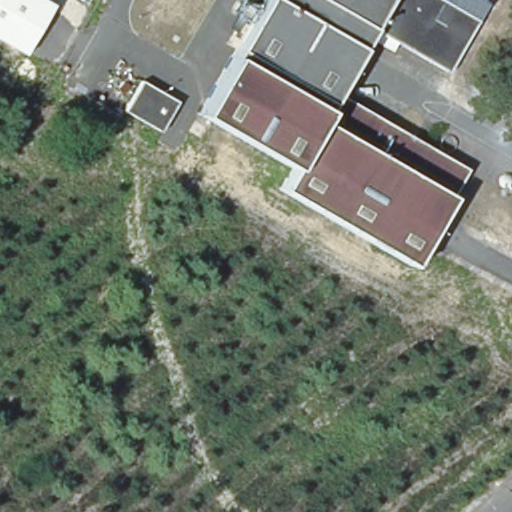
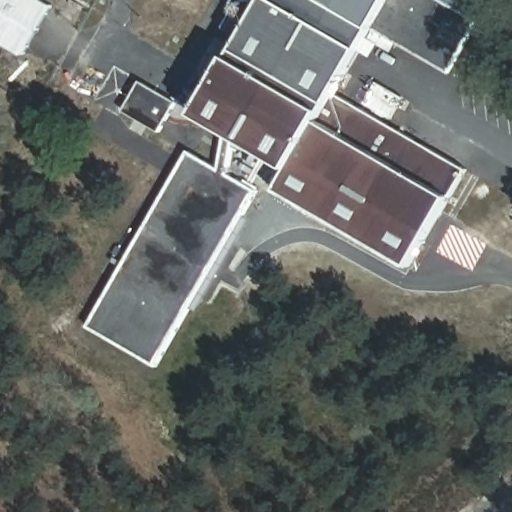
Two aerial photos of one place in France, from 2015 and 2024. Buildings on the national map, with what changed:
unchanged [(0,6),(0,0),(44,0),(53,5),(42,31),(0,6)]
unchanged [(268,0),(443,0),(483,21),(450,76),(374,30),(340,96),(470,170),(454,199),(414,265),(281,189),(295,168),(234,133),(222,126),(202,115),(235,59),(268,0)]
unchanged [(0,44),(0,6),(42,31),(26,59),(0,44)]
demolished [(182,40),(195,16),(222,31),(208,54),(182,40)]
unchanged [(128,115),(145,82),(180,101),(163,135),(128,115)]
new [(189,152),(218,169),(222,126),(234,133),(229,174),(259,191),(245,214),(250,217),(198,309),(191,305),(157,365),(89,325),(189,152)]

